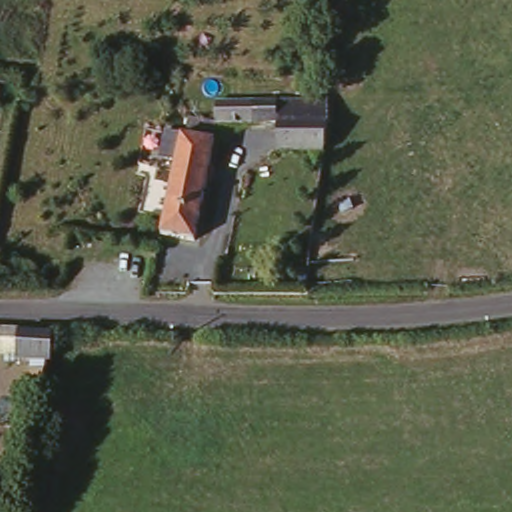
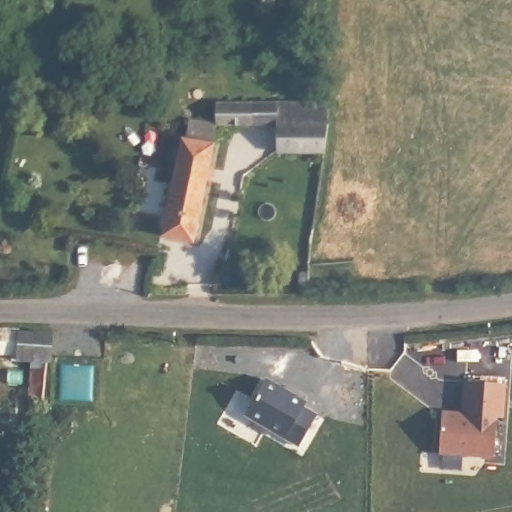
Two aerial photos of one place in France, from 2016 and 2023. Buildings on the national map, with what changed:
unchanged [(325,107),(319,152),(274,155),(272,149),(275,132),(211,132),(212,127),(209,127),(209,107),(300,105),(325,107)]
unchanged [(155,228),(177,126),(209,127),(212,127),(211,132),(189,247),(152,241),(155,228)]
unchanged [(22,401),(25,360),(8,360),(7,353),(0,354),(0,330),(8,330),(57,335),(48,402),(22,401)]
new [(266,382),(306,406),(303,410),(317,418),(300,449),(246,418),(266,382)]
new [(467,420),(467,408),(469,387),(508,389),(506,422),(501,422),(498,462),(443,458),(446,418),(467,420)]

